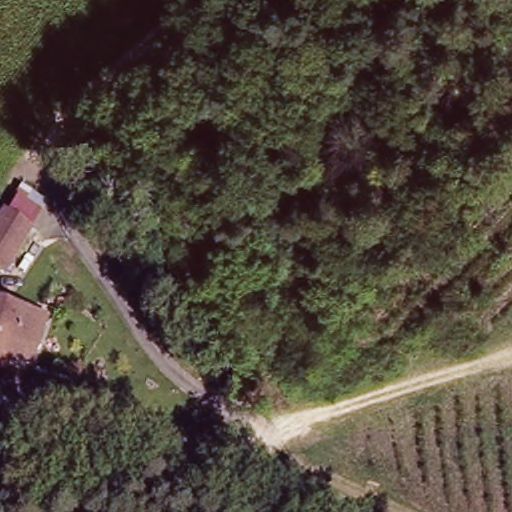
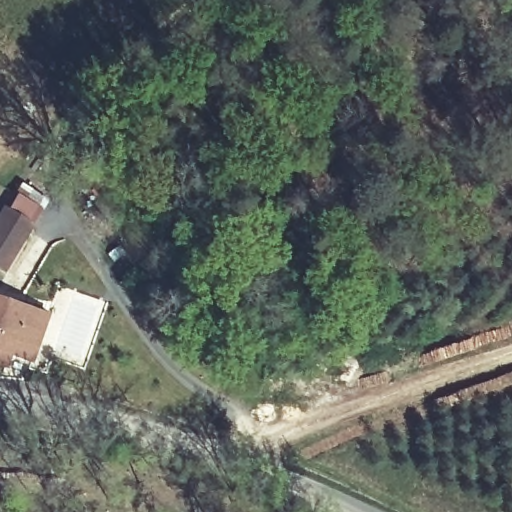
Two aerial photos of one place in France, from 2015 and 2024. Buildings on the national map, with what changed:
unchanged [(36,229),(18,255),(5,273),(0,269),(0,227),(10,213),(36,229)]
unchanged [(0,301),(43,317),(26,360),(10,354),(6,366),(0,363),(0,301)]

